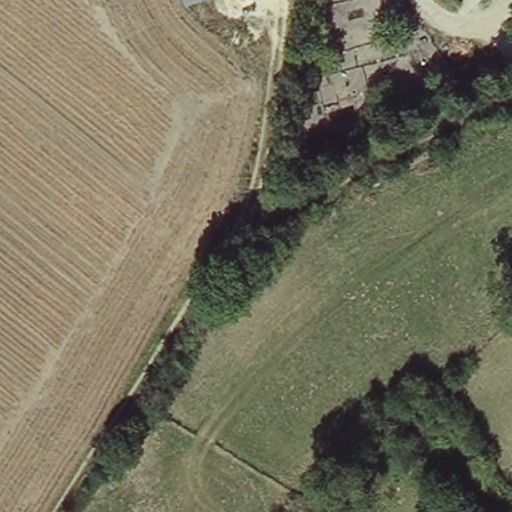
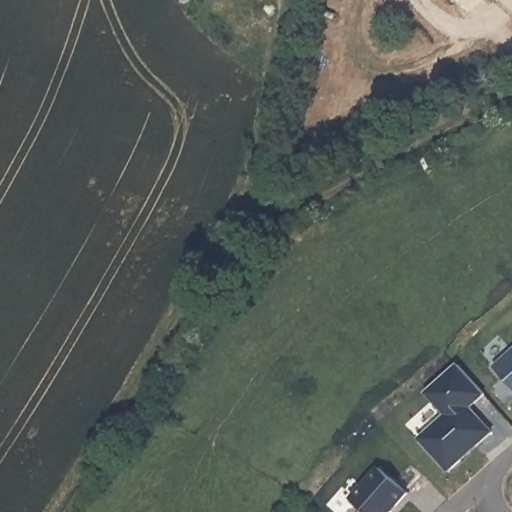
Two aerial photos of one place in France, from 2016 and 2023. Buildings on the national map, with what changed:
unchanged [(185,6),(183,0),(201,0),(185,6)]
new [(512,388),(494,368),(512,351),(512,388)]
new [(414,435),(440,412),(425,395),(458,365),(483,392),(467,405),(492,434),(476,447),(472,442),(459,453),(463,457),(447,471),(414,435)]
new [(407,494),(395,508),(393,506),(388,512),(362,512),(350,502),(379,470),(407,494)]

